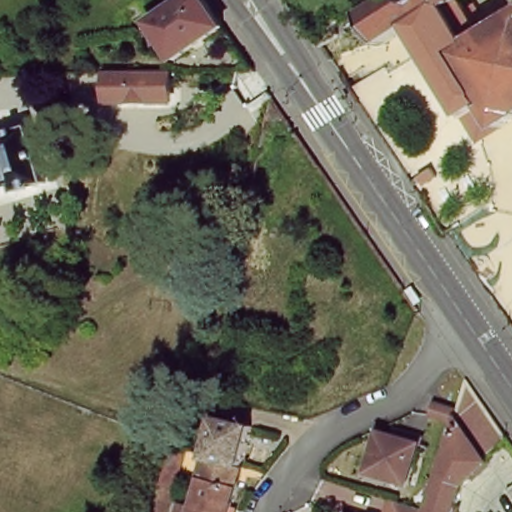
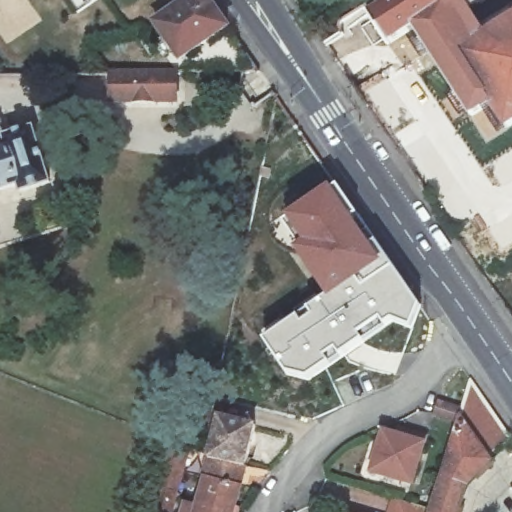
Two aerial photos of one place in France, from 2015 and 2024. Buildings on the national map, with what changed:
new [(90,0),(78,11),(70,0),(91,0),(90,0)]
unchanged [(152,21),(182,0),(208,0),(225,26),(177,58),(152,21)]
unchanged [(378,3),(384,12),(402,0),(456,0),(413,27),(387,44),(364,8),(375,0),(376,0),(378,3)]
unchanged [(472,3),(482,19),(478,21),(485,31),(512,12),(512,125),(489,139),(413,27),(456,0),(465,0),(468,6),(472,3)]
unchanged [(110,103),(110,72),(171,73),(171,103),(110,103)]
unchanged [(8,121),(12,135),(40,129),(54,184),(25,192),(22,186),(0,191),(0,123),(8,121)]
new [(338,187),(421,308),(412,330),(394,324),(311,381),(286,374),(264,341),(333,297),(285,224),(338,187)]
unchanged [(435,419),(439,407),(462,414),(472,384),(512,442),(512,444),(469,487),(461,512),(431,512),(458,427),(435,419)]
unchanged [(202,479),(216,418),(252,428),(237,487),(202,479)]
unchanged [(412,484),(374,472),(387,433),(400,437),(401,431),(412,434),(427,439),(412,484)]
unchanged [(164,438),(185,446),(182,460),(180,468),(170,512),(159,512),(165,487),(154,483),(164,438)]
unchanged [(231,512),(204,512),(194,510),(202,479),(237,487),(231,512)]
unchanged [(429,512),(396,512),(398,503),(429,512)]
unchanged [(204,512),(177,512),(178,506),(194,510),(204,512)]

